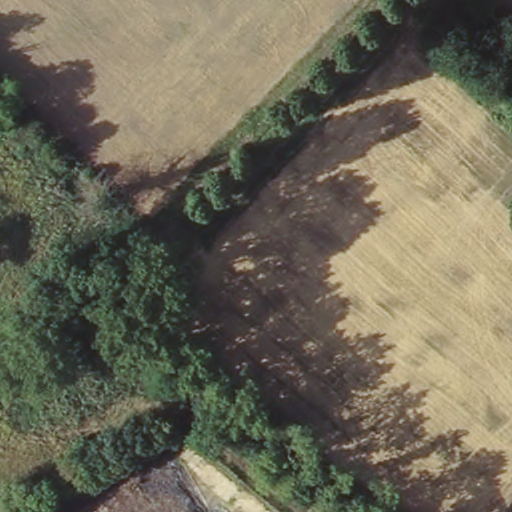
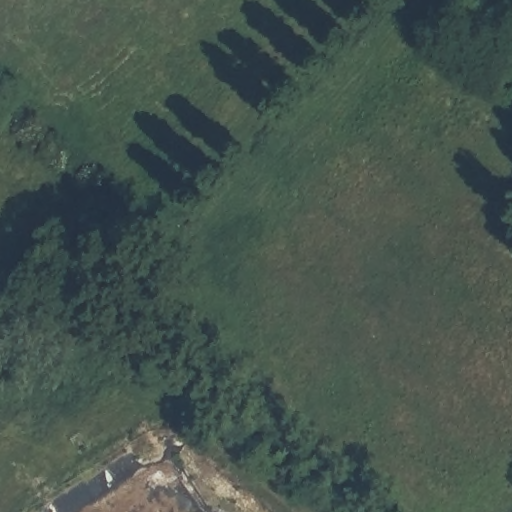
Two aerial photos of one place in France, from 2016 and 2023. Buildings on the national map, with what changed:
[]

